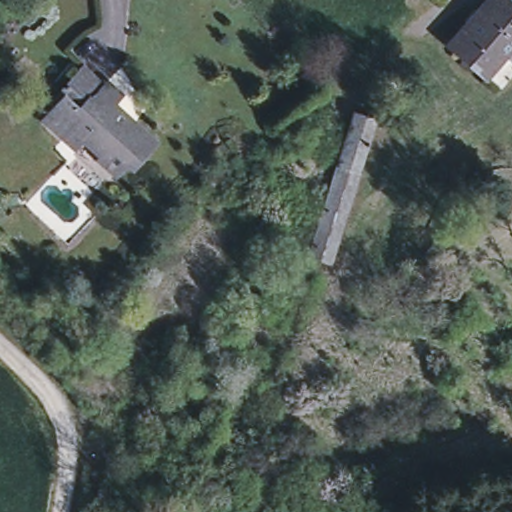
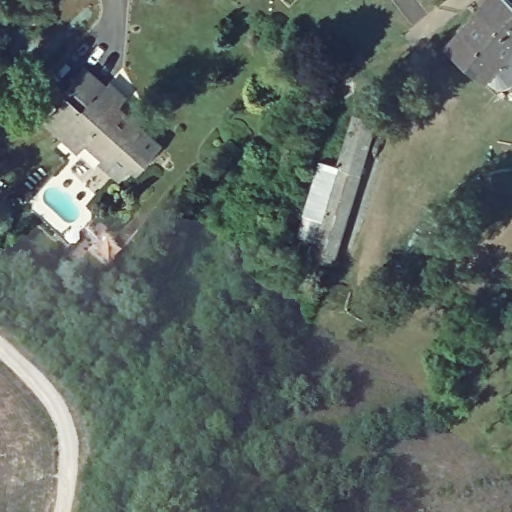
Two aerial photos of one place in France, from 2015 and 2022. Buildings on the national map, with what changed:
unchanged [(488,76),(455,47),(497,0),(502,0),(512,9),(512,49),(488,76)]
unchanged [(152,155),(133,175),(129,171),(115,186),(95,168),(100,162),(85,147),(77,156),(37,121),(67,88),(87,67),(107,85),(112,80),(141,107),(132,117),(162,145),(152,155)]
unchanged [(357,115),(378,122),(340,244),(333,264),(313,258),(320,235),(357,115)]

